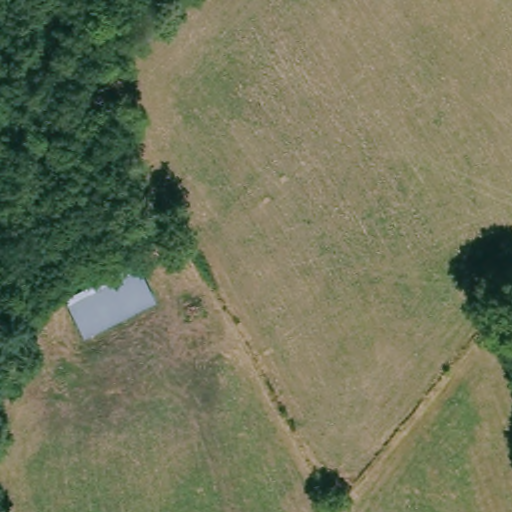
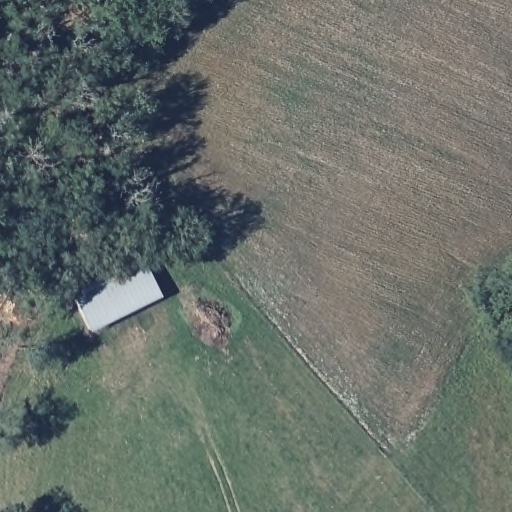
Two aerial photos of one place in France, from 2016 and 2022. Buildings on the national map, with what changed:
unchanged [(151,302),(79,337),(60,292),(132,260),(151,302)]

